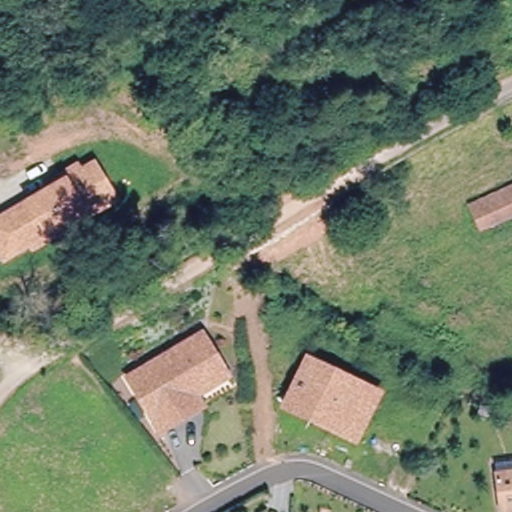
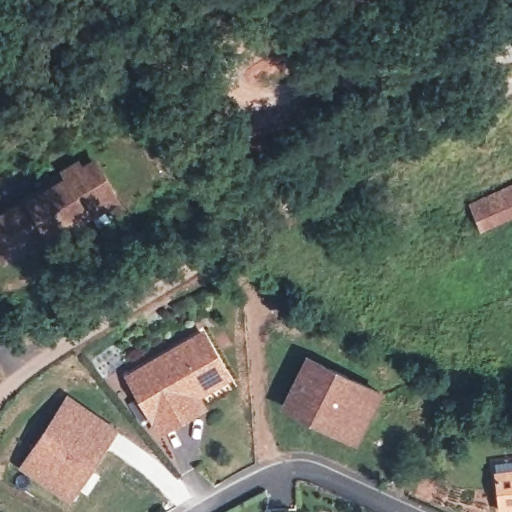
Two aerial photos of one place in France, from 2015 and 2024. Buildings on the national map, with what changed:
unchanged [(0,258),(0,223),(10,217),(64,186),(60,179),(76,170),(80,176),(92,168),(111,199),(99,206),(29,247),(2,262),(0,258)]
unchanged [(512,188),(512,216),(486,226),(476,203),(512,188)]
unchanged [(160,434),(128,381),(201,339),(226,380),(195,398),(201,409),(183,420),(160,434)]
unchanged [(284,406),(307,357),(380,391),(362,426),(345,418),(337,433),(317,423),(318,422),(302,414),(284,406)]
new [(119,430),(71,504),(18,470),(66,395),(119,430)]
unchanged [(501,512),(496,477),(495,467),(512,465),(512,512),(501,512)]

